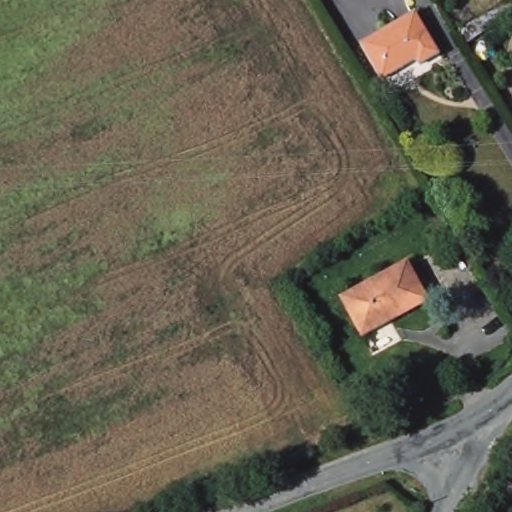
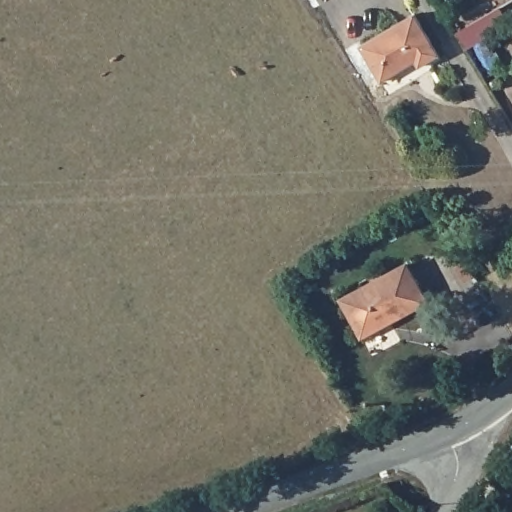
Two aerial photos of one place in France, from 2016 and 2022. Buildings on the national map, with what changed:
unchanged [(424,66),(420,59),(386,80),(365,46),(420,14),(444,53),(424,66)]
unchanged [(436,301),(372,336),(351,299),(415,265),(436,301)]

